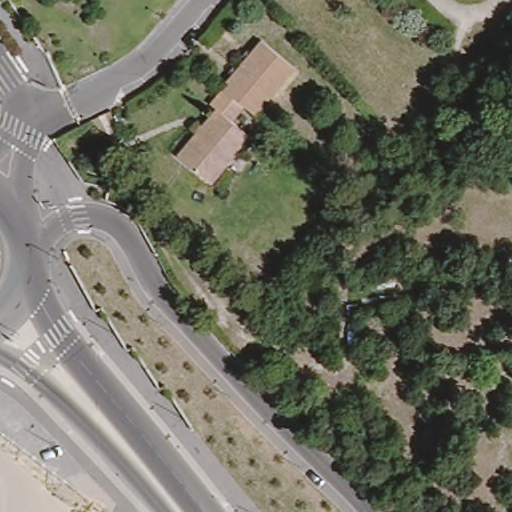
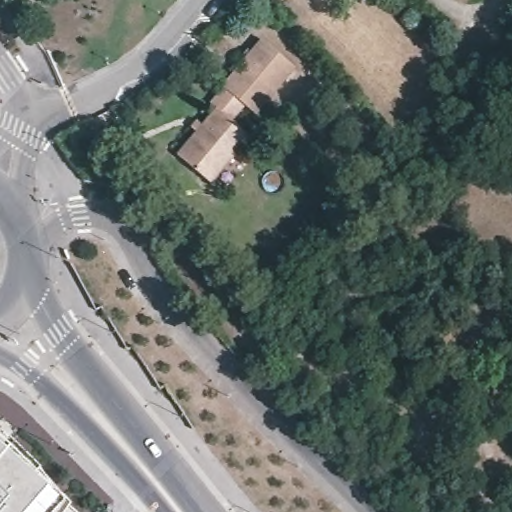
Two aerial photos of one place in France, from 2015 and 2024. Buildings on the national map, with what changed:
unchanged [(184,151),(202,128),(195,123),(198,117),(206,123),(223,102),(232,110),(245,94),(220,73),(255,27),(290,54),(254,101),(266,110),(253,126),(255,128),(233,160),(244,169),(230,188),(218,179),(184,151)]
new [(45,461),(42,464),(72,500),(75,496),(86,508),(83,512),(0,512),(0,421),(45,461)]
demolished [(63,512),(27,512),(25,510),(0,490),(0,461),(63,512)]

